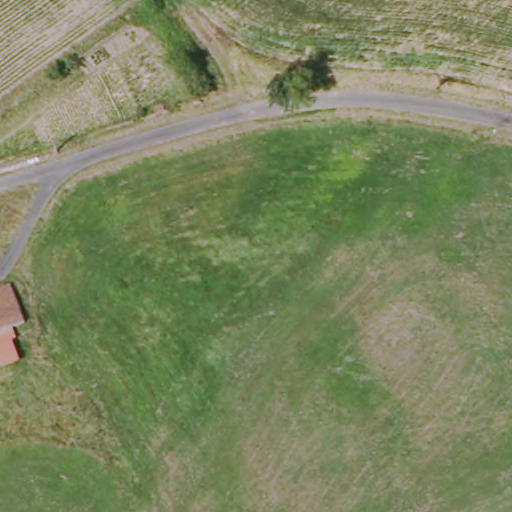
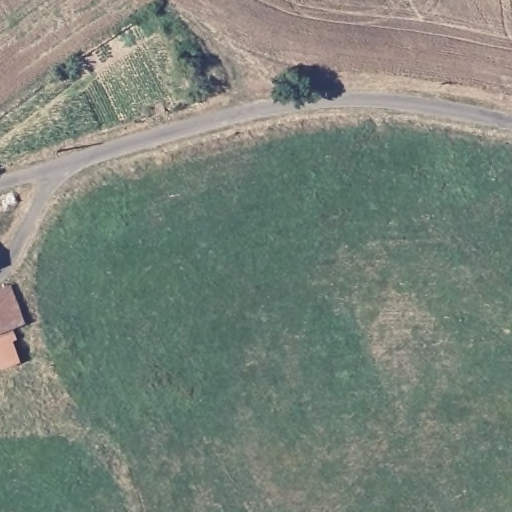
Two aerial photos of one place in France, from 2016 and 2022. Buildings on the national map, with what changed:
unchanged [(6,327),(17,359),(0,366),(0,286),(7,284),(20,321),(6,327)]

